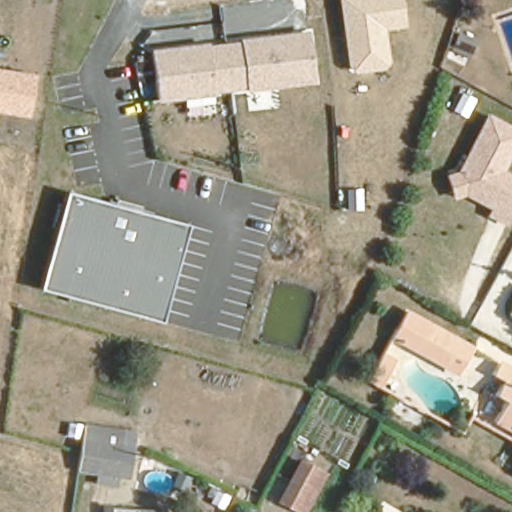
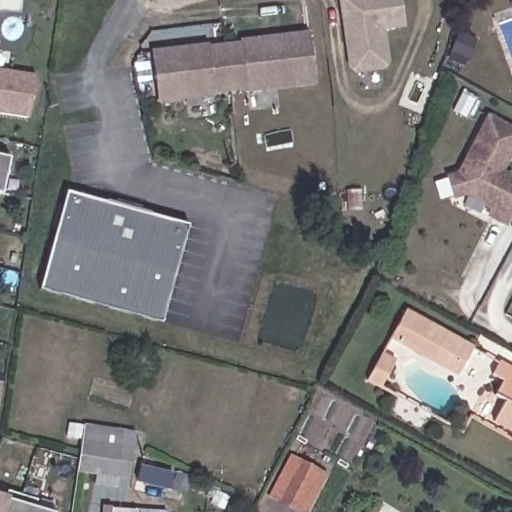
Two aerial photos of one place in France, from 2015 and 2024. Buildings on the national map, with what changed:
unchanged [(385,31),(388,61),(383,70),(349,73),(338,0),(402,0),(407,26),(385,31)]
unchanged [(208,43),(209,46),(239,43),(238,39),(307,31),(316,84),(245,93),(245,90),(214,94),(215,104),(185,108),(184,101),(157,104),(150,50),(208,43)]
unchanged [(29,116),(0,112),(0,69),(36,75),(29,116)]
unchanged [(512,175),(512,179),(510,185),(512,186),(512,218),(507,227),(486,216),(489,208),(463,195),(452,198),(445,174),(457,171),(490,115),(512,128),(512,154),(503,170),(512,175)]
new [(9,158),(2,194),(0,193),(0,156),(9,158)]
unchanged [(165,322),(41,291),(67,192),(190,224),(165,322)]
unchanged [(512,312),(502,305),(512,289),(512,312)]
unchanged [(433,357),(402,340),(401,342),(388,335),(403,309),(469,348),(462,362),(457,371),(433,357)]
unchanged [(364,376),(379,350),(395,359),(381,385),(364,376)]
unchanged [(487,421),(492,414),(503,394),(493,389),(500,377),(491,371),(497,359),(512,368),(512,435),(506,432),(487,421)]
unchanged [(120,426),(135,427),(130,478),(117,478),(116,482),(95,480),(95,468),(76,467),(78,423),(120,426)]
unchanged [(279,493),(302,456),(324,469),(302,506),(279,493)]
new [(7,496),(7,490),(37,498),(35,506),(54,512),(0,512),(0,494),(7,496)]
unchanged [(110,502),(134,503),(133,512),(109,512),(110,502)]
unchanged [(149,507),(165,508),(164,512),(149,512),(149,507)]

